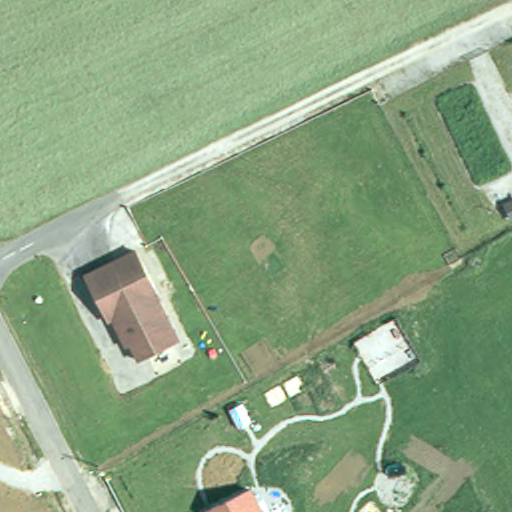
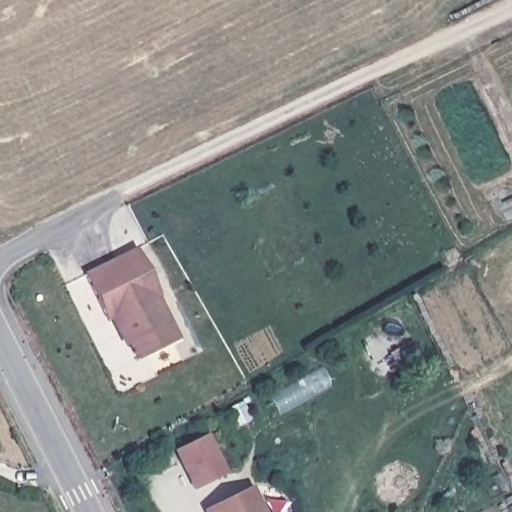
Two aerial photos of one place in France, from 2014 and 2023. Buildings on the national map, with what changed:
unchanged [(124,330),(115,313),(111,316),(88,270),(139,245),(161,290),(159,291),(166,306),(181,335),(142,355),(133,338),(129,340),(124,330)]
new [(194,490),(174,450),(207,433),(228,473),(194,490)]
unchanged [(264,512),(204,512),(203,510),(251,487),(264,512)]

